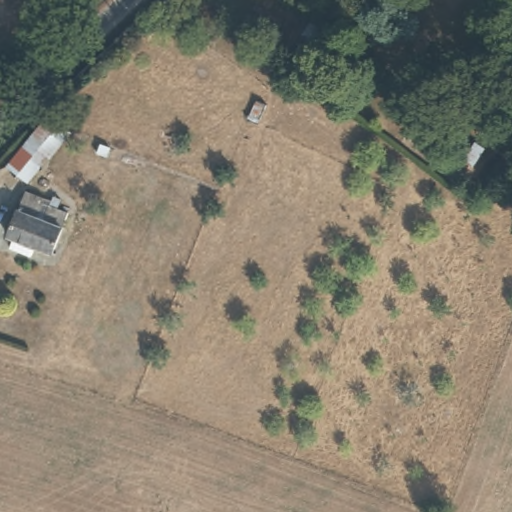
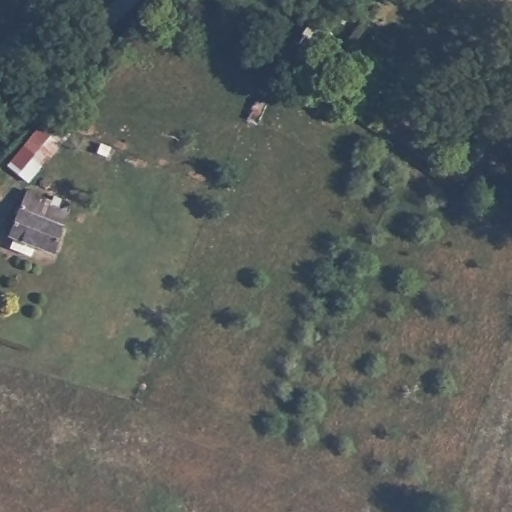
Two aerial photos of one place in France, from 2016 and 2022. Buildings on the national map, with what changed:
unchanged [(44,125),(70,138),(29,186),(4,170),(44,125)]
unchanged [(12,254),(14,242),(11,241),(27,196),(42,203),(40,210),(48,213),(53,204),(59,206),(57,214),(68,218),(53,257),(37,251),(33,261),(12,254)]

